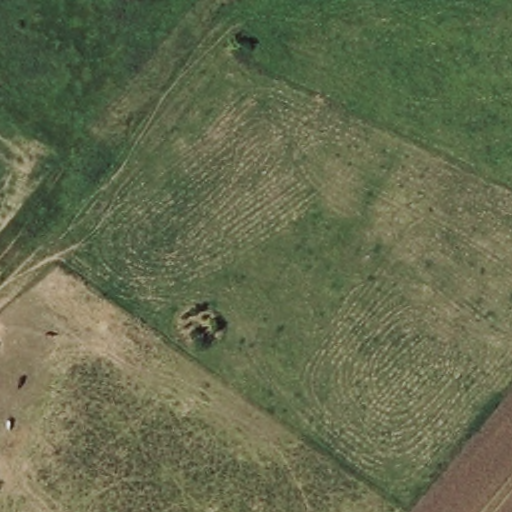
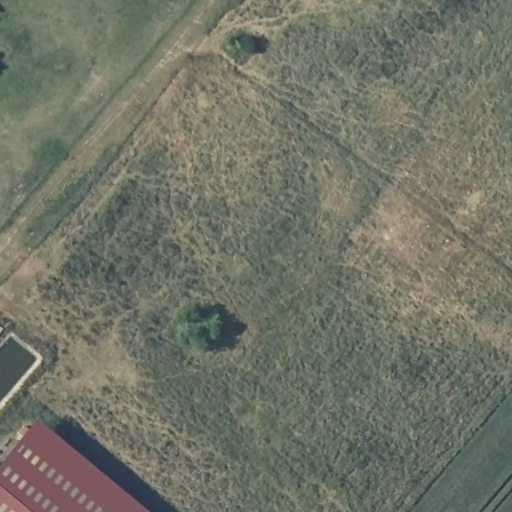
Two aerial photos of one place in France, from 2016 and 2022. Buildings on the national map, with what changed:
new [(150,512),(0,512),(0,462),(36,417),(150,512)]

